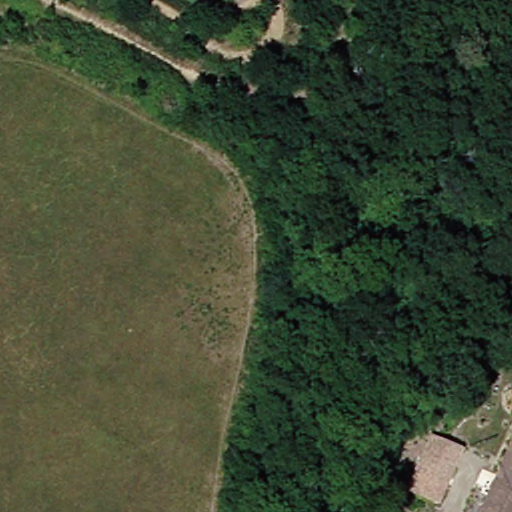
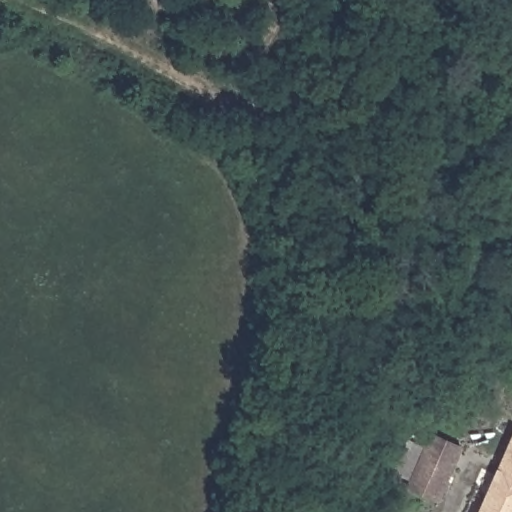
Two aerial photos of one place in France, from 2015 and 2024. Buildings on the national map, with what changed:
unchanged [(402,483),(416,451),(425,435),(450,446),(444,465),(427,496),(402,483)]
unchanged [(478,512),(512,437),(512,512),(478,512)]

